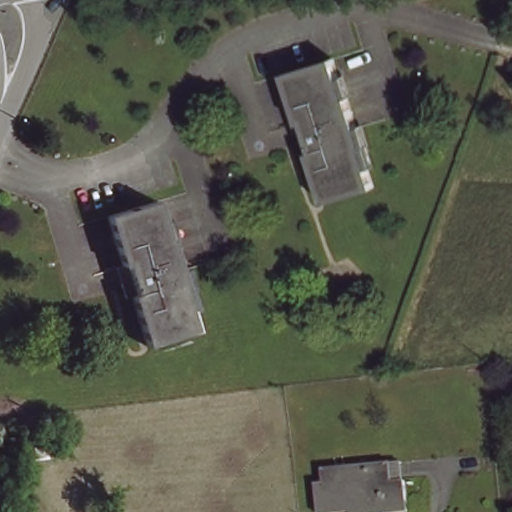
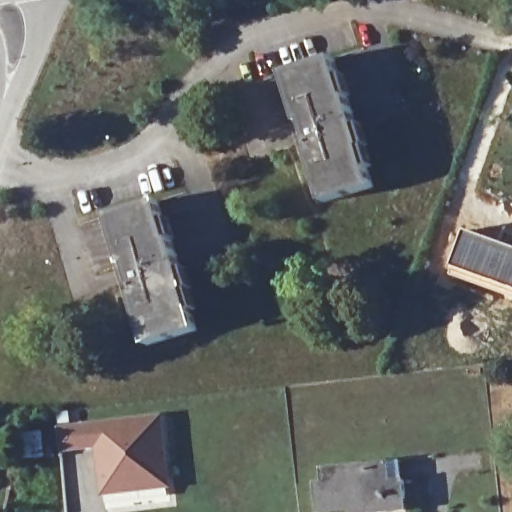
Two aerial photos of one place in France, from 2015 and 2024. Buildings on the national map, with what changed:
unchanged [(334,58),(346,97),(348,97),(364,147),(361,148),(374,187),(324,203),(309,154),(302,155),(293,125),(299,122),(284,73),(334,58)]
unchanged [(158,200),(170,240),(172,240),(188,290),(186,290),(198,330),(148,345),(133,296),(126,298),(116,267),(123,265),(108,215),(158,200)]
new [(467,229),(512,245),(512,297),(451,275),(467,229)]
new [(95,450),(60,453),(56,427),(161,415),(171,489),(99,496),(95,450)]
unchanged [(56,455),(45,456),(28,458),(25,435),(43,433),(43,438),(54,437),(56,455)]
unchanged [(363,512),(362,504),(318,508),(316,482),(324,482),(322,468),(390,462),(394,461),(400,461),(402,481),(404,480),(406,500),(407,511),(399,512),(363,512)]

